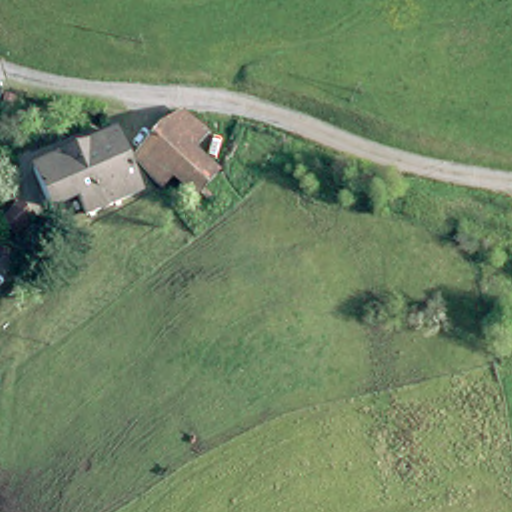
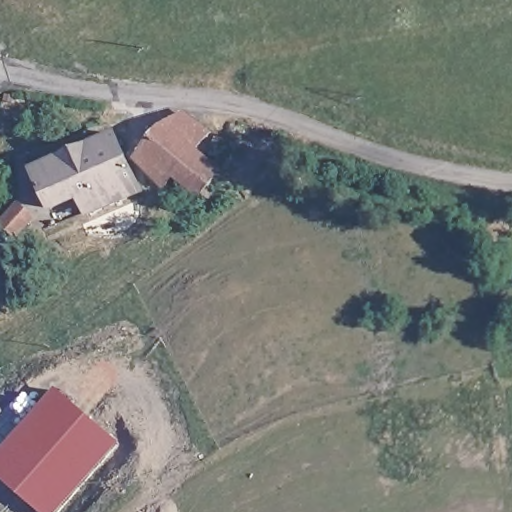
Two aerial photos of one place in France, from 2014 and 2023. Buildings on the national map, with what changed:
unchanged [(195,148),(218,169),(198,189),(174,166),(161,178),(134,149),(163,123),(188,111),(210,131),(195,148)]
unchanged [(105,126),(135,182),(83,209),(73,191),(46,205),(26,168),(105,126)]
unchanged [(18,231),(3,218),(18,198),(34,210),(18,231)]
new [(57,512),(38,512),(0,478),(0,455),(59,391),(118,442),(57,512)]

